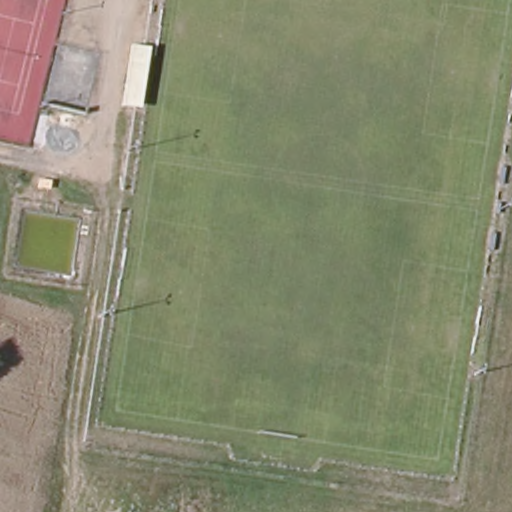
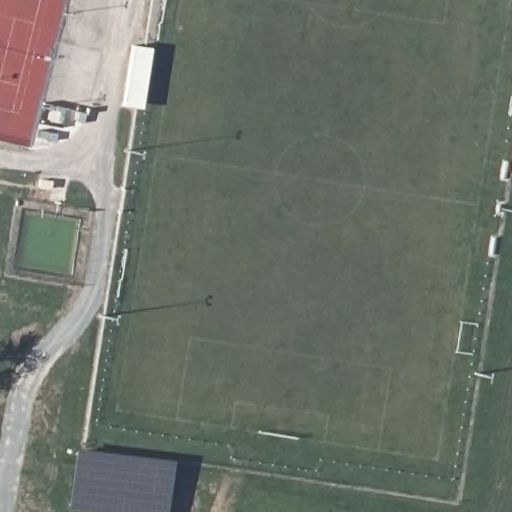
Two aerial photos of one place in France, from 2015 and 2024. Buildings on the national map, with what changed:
unchanged [(128,44),(150,47),(141,107),(119,103),(128,44)]
new [(66,508),(74,448),(171,459),(165,512),(94,512),(66,508)]

